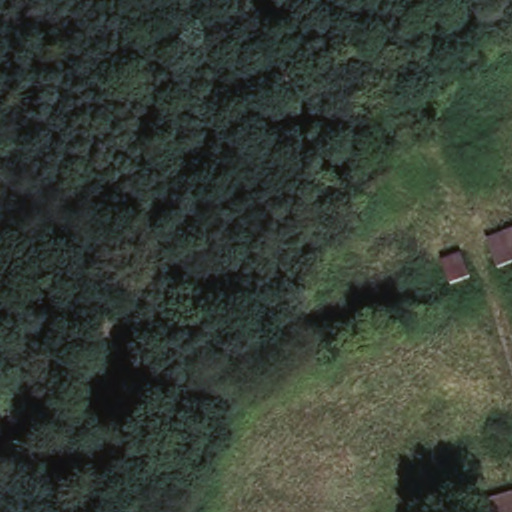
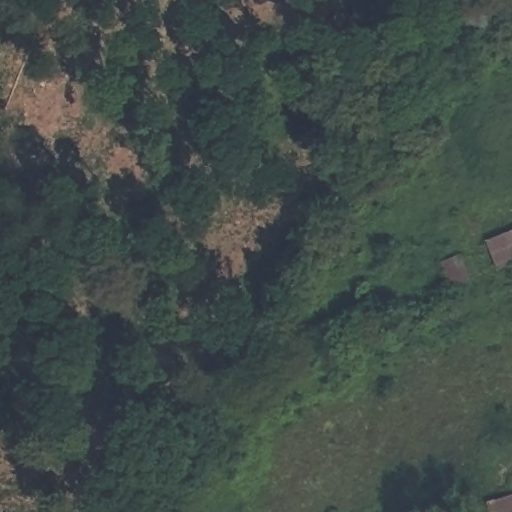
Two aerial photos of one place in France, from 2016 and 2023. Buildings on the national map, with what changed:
unchanged [(512,227),(512,260),(499,265),(486,237),(512,227)]
unchanged [(460,250),(470,275),(451,282),(441,257),(460,250)]
unchanged [(491,512),(488,503),(512,495),(512,512),(491,512)]

